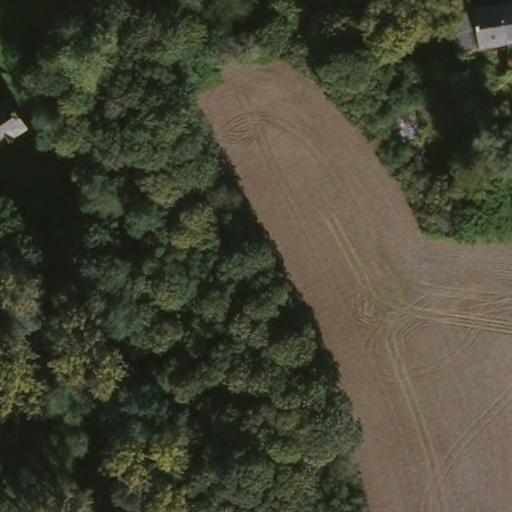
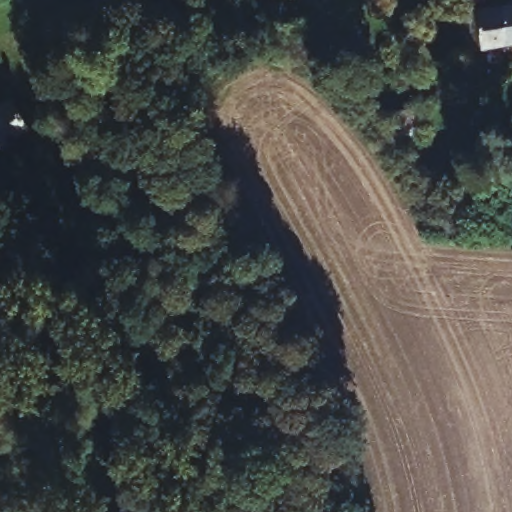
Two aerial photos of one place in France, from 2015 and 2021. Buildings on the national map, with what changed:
unchanged [(475,5),(479,5),(500,0),(503,0),(510,34),(481,41),(460,46),(455,9),(475,5)]
unchanged [(503,0),(512,0),(512,34),(510,34),(503,0)]
unchanged [(12,94),(30,123),(25,126),(0,143),(0,102),(12,94)]
unchanged [(103,190),(85,197),(77,201),(44,121),(61,115),(69,111),(103,190)]

